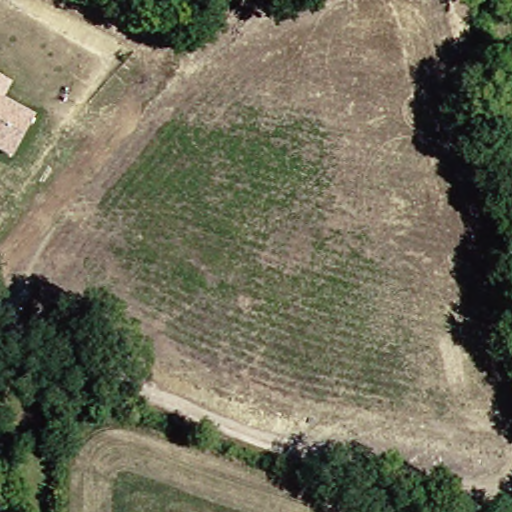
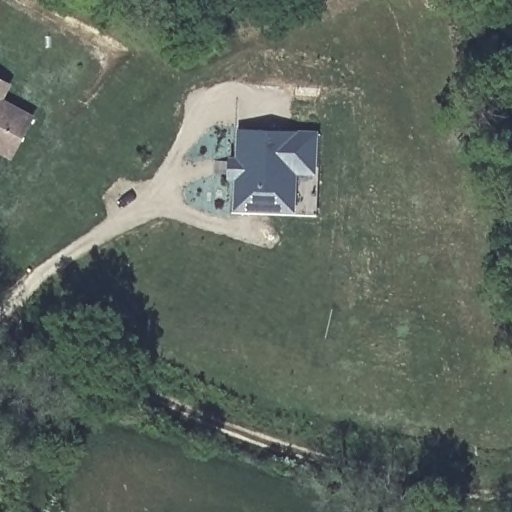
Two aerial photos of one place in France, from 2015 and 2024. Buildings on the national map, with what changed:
demolished [(235,10),(237,0),(257,0),(251,15),(235,10)]
unchanged [(0,156),(0,87),(12,92),(4,108),(36,125),(16,164),(0,156)]
new [(237,129),(312,127),(312,164),(287,164),(288,187),(267,188),(268,209),(239,209),(237,129)]

